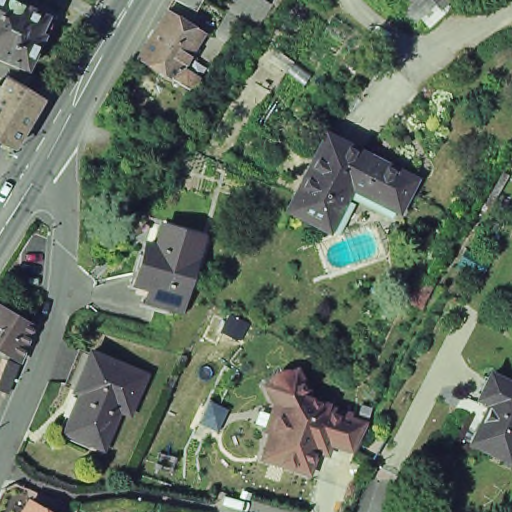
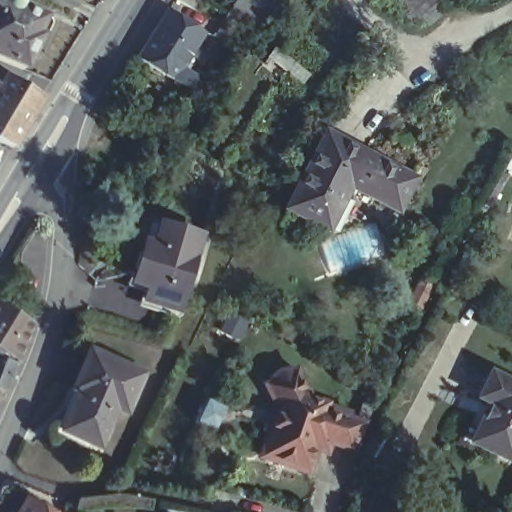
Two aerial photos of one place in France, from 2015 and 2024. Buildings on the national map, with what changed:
unchanged [(56,15),(43,44),(41,45),(38,44),(30,59),(29,59),(27,62),(27,61),(0,51),(0,0),(31,0),(55,10),(56,15)]
unchanged [(183,0),(204,0),(199,9),(183,0)]
unchanged [(232,12),(230,11),(238,0),(269,0),(274,3),(257,27),(243,19),(230,40),(219,34),(232,12)]
unchanged [(405,0),(447,0),(424,21),(405,0)]
unchanged [(196,92),(176,80),(140,57),(170,9),(206,33),(182,71),(202,84),(196,92)]
unchanged [(0,93),(2,91),(4,92),(10,81),(44,101),(16,149),(0,142),(0,93)]
unchanged [(400,209),(387,203),(352,185),(330,228),(289,208),(326,134),(401,172),(415,179),(400,209)]
unchanged [(153,299),(157,286),(142,282),(140,281),(151,242),(155,243),(162,245),(167,224),(206,235),(185,310),(175,308),(165,304),(155,300),(153,299)]
unchanged [(410,300),(419,284),(423,275),(435,282),(430,290),(422,307),(410,300)]
unchanged [(0,354),(0,311),(14,319),(27,327),(14,363),(0,354)]
unchanged [(97,442),(70,431),(86,392),(80,389),(70,385),(87,348),(95,352),(149,374),(134,412),(120,406),(104,445),(97,442)]
unchanged [(1,394),(0,394),(0,369),(2,363),(12,367),(1,394)]
unchanged [(477,441),(494,402),(484,398),(495,372),(512,380),(512,457),(477,441)]
unchanged [(319,455),(313,454),(305,476),(304,476),(259,461),(267,437),(260,434),(270,405),(262,389),(267,387),(272,383),(274,381),(276,379),(279,378),(282,378),(287,377),(292,374),(307,404),(325,410),(327,411),(332,413),(346,417),(344,423),(363,429),(350,454),(327,447),(327,448),(324,457),(319,455)]
unchanged [(49,512),(19,512),(24,503),(37,497),(46,501),(49,512)]

